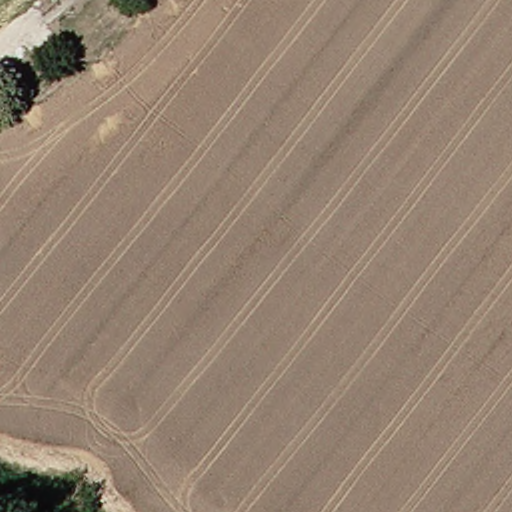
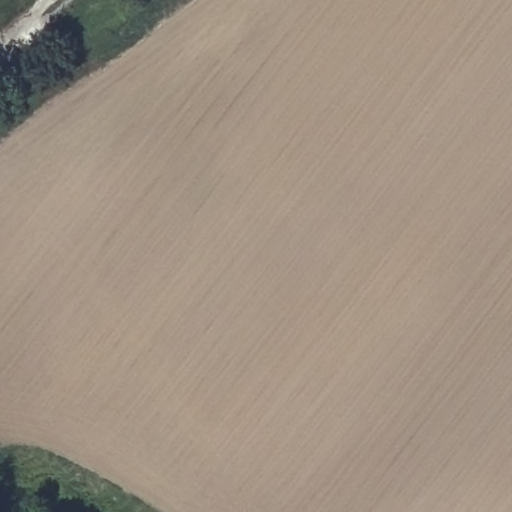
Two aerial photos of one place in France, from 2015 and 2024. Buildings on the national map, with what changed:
[]

